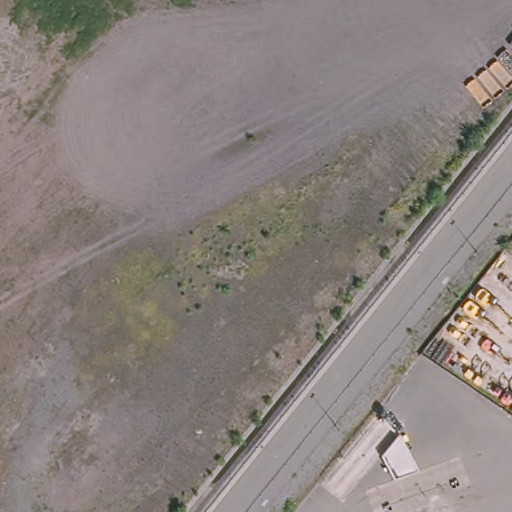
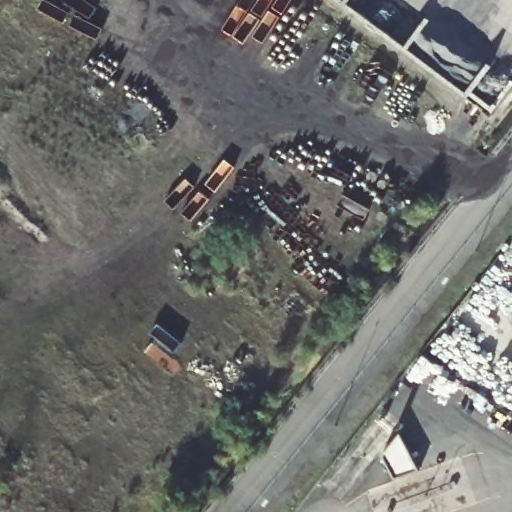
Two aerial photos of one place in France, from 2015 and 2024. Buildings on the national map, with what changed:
unchanged [(394,480),(381,456),(400,433),(419,470),(394,480)]

